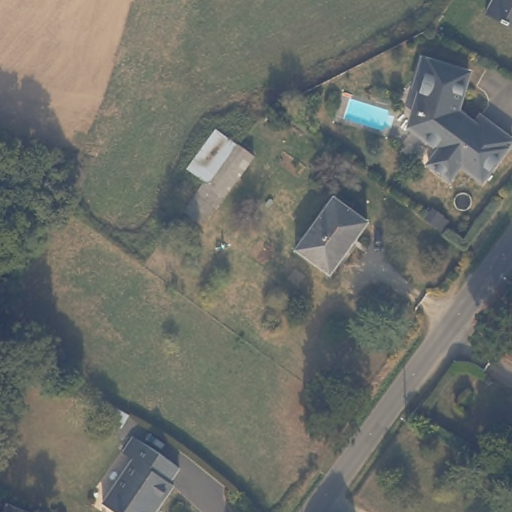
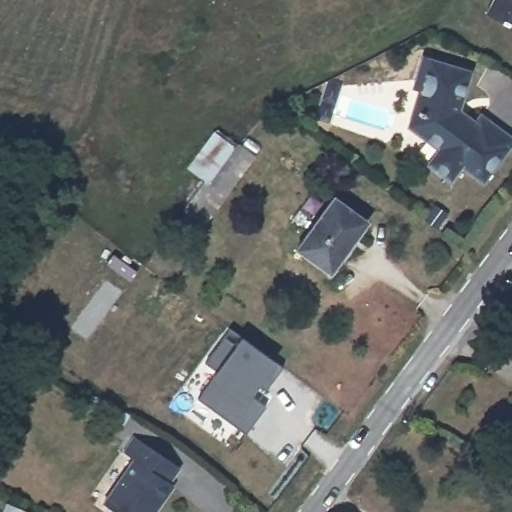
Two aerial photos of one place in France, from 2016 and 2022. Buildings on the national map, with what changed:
unchanged [(494,0),(512,0),(512,23),(489,10),(494,0)]
unchanged [(460,168),(450,183),(428,169),(438,154),(425,144),(427,141),(412,130),(423,95),(420,92),(422,82),(416,81),(422,58),(467,71),(455,116),(462,121),(462,119),(473,126),(478,119),(512,141),(482,183),(460,168)]
unchanged [(256,157),(203,221),(186,204),(209,178),(185,164),(217,126),(256,157)]
unchanged [(337,262),(302,239),(341,189),(373,214),(337,262)]
new [(217,368),(205,361),(230,327),(242,335),(276,361),(283,366),(266,388),(258,383),(251,393),(265,404),(245,432),(198,397),(212,378),(210,377),(217,368)]
unchanged [(124,435),(97,417),(104,406),(131,423),(124,435)]
unchanged [(172,488),(162,506),(159,504),(154,512),(113,512),(107,508),(133,463),(126,457),(133,442),(179,470),(170,484),(172,488)]
unchanged [(0,512),(0,507),(4,500),(19,507),(26,511),(25,512),(0,512)]

